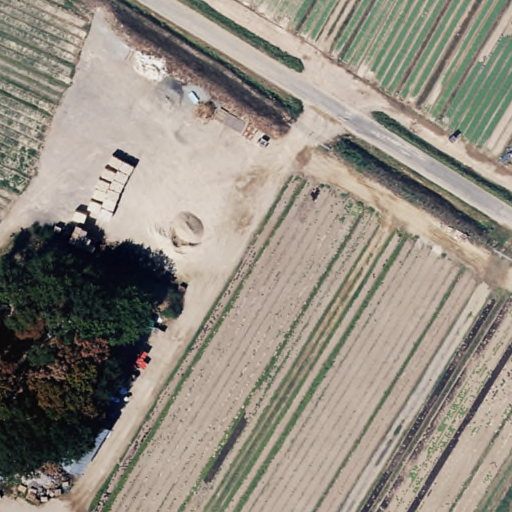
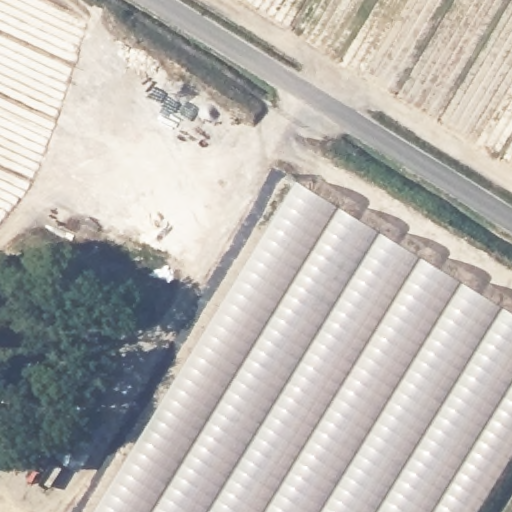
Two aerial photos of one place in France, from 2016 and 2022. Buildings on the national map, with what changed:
new [(297,181),(512,311),(512,463),(481,512),(93,512),(297,181)]
new [(82,409),(108,424),(80,472),(55,455),(82,409)]

